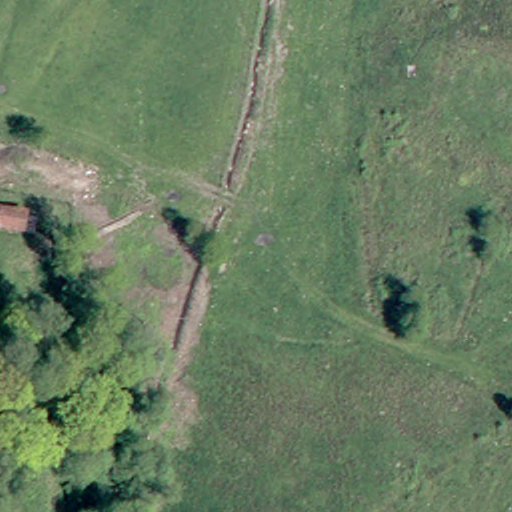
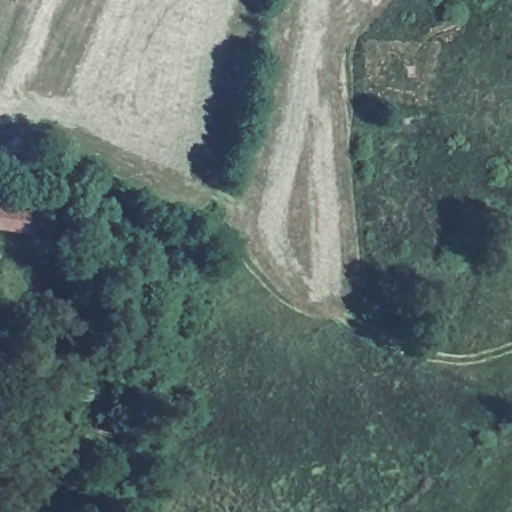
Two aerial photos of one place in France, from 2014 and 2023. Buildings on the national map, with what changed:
unchanged [(27,215),(22,234),(0,230),(0,208),(27,215)]

